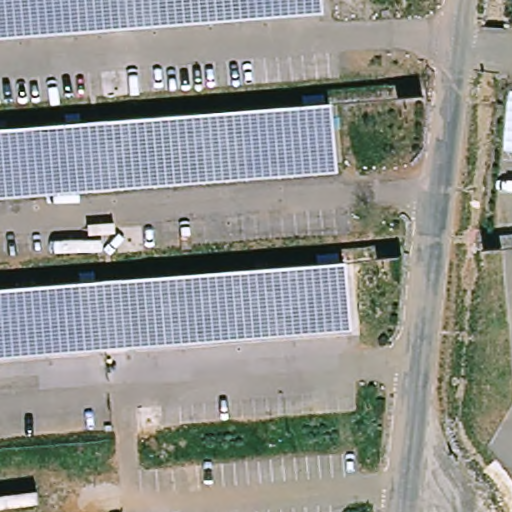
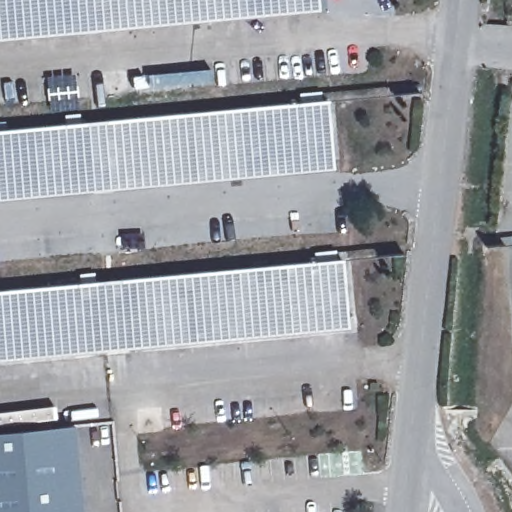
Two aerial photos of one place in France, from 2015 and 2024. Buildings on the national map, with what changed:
unchanged [(77,25),(0,33),(0,0),(74,0),(77,25)]
unchanged [(320,8),(102,28),(100,0),(320,0),(320,8)]
unchanged [(103,39),(102,28),(320,8),(321,19),(103,39)]
unchanged [(0,44),(0,33),(77,25),(77,36),(0,44)]
unchanged [(332,163),(331,163),(112,182),(107,120),(325,100),(326,100),(332,163)]
unchanged [(85,122),(91,185),(0,193),(0,131),(85,122)]
unchanged [(332,170),(113,190),(112,182),(331,163),(332,170)]
unchanged [(0,201),(0,193),(91,185),(92,192),(0,201)]
unchanged [(346,322),(127,342),(122,279),(340,260),(346,322)]
unchanged [(106,344),(0,354),(0,290),(100,281),(106,344)]
unchanged [(128,352),(127,342),(346,322),(348,333),(128,352)]
unchanged [(0,364),(0,354),(106,344),(107,354),(0,364)]
new [(75,425),(82,512),(0,512),(0,432),(75,425)]

